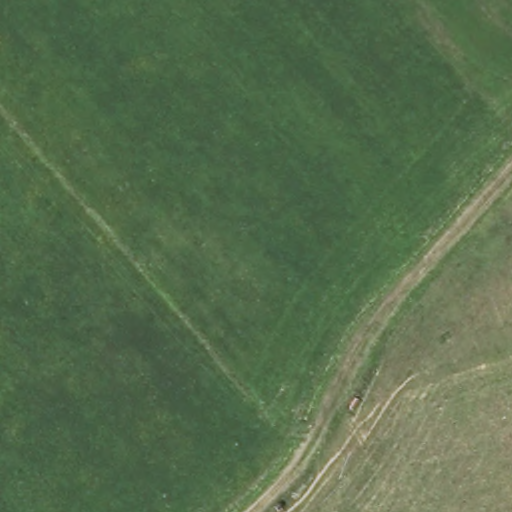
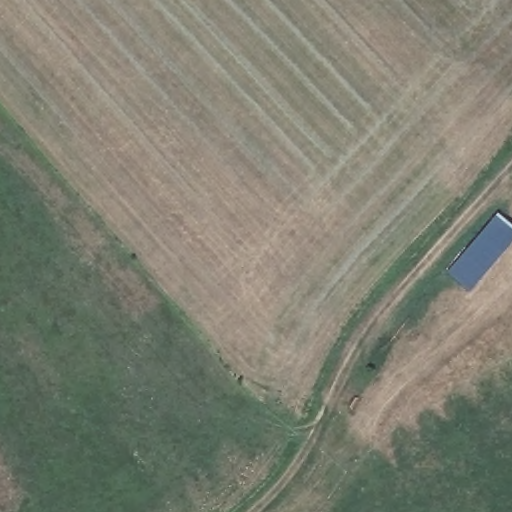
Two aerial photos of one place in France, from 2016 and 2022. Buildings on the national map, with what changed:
new [(498,213),(512,226),(512,238),(467,288),(448,271),(498,213)]

